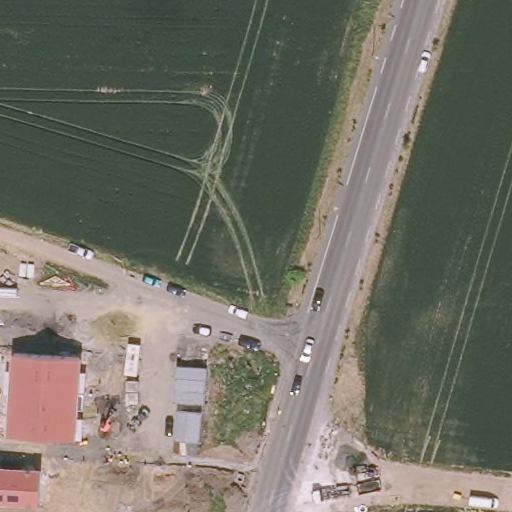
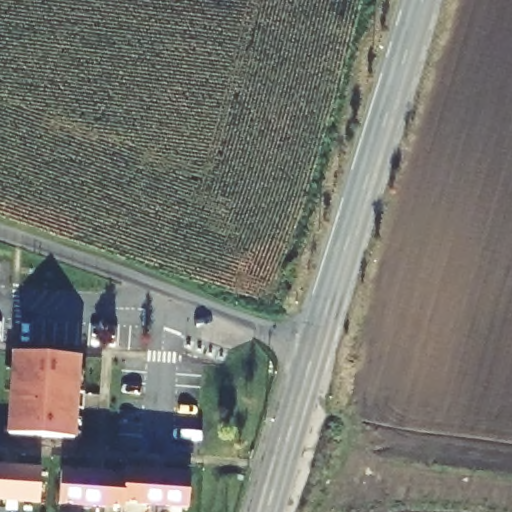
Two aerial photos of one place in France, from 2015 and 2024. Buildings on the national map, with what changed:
unchanged [(81,359),(80,372),(86,372),(84,397),(80,397),(78,418),(82,418),(80,442),(7,435),(10,392),(3,392),(5,369),(10,369),(11,354),(81,359)]
unchanged [(42,468),(40,505),(0,502),(0,465),(42,468)]
new [(61,472),(88,474),(127,477),(125,505),(125,510),(58,505),(61,472)]
new [(127,477),(127,472),(192,477),(190,509),(125,505),(127,477)]

